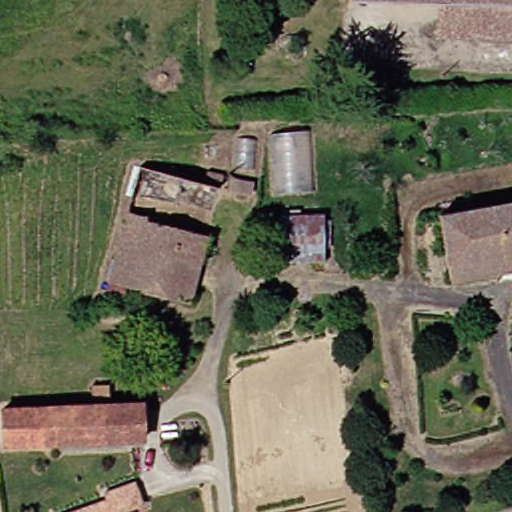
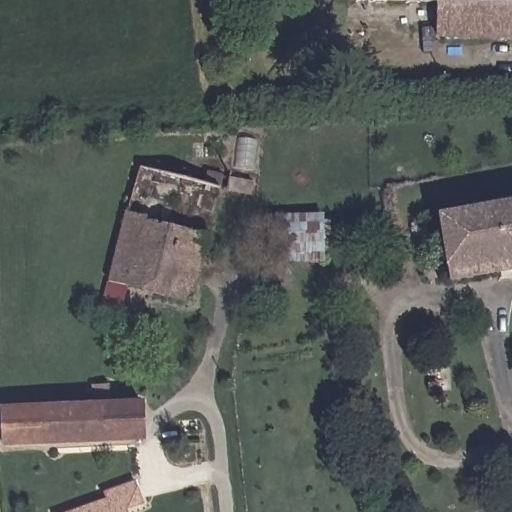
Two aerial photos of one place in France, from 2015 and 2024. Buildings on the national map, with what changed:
unchanged [(406,1),(355,0),(354,32),(324,31),(324,0),(512,0),(512,32),(405,31),(406,1)]
demolished [(314,130),(317,190),(273,192),(270,134),(314,130)]
unchanged [(188,266),(108,246),(127,168),(192,185),(194,173),(211,177),(188,266)]
unchanged [(512,199),(512,263),(497,265),(467,280),(441,283),(431,215),(512,199)]
unchanged [(314,256),(272,259),(272,218),(314,214),(314,256)]
unchanged [(179,302),(116,286),(108,319),(91,314),(108,246),(188,266),(179,302)]
unchanged [(81,401),(80,383),(95,381),(96,401),(129,399),(130,435),(0,441),(0,405),(81,401)]
unchanged [(94,491),(126,476),(136,500),(116,509),(117,512),(61,512),(97,496),(94,491)]

